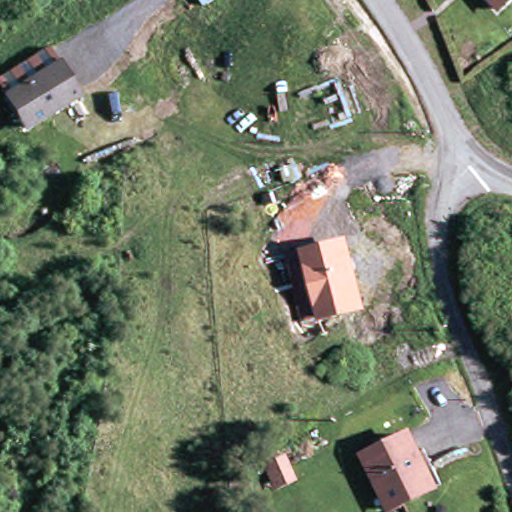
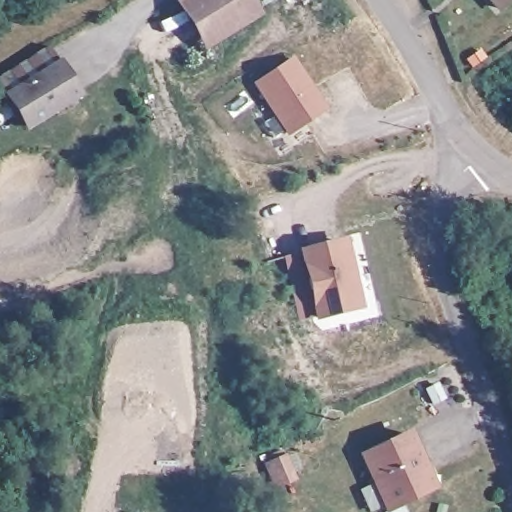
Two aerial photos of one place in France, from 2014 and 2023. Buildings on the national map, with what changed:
new [(261,14),(204,49),(175,0),(252,0),(261,14)]
unchanged [(500,0),(509,0),(504,5),(500,0)]
new [(324,106),(289,131),(256,84),(291,59),(324,106)]
unchanged [(8,93),(60,60),(79,91),(28,123),(8,93)]
unchanged [(346,237),(364,309),(321,319),(316,305),(311,306),(296,247),(346,237)]
unchanged [(435,488),(389,505),(371,449),(414,433),(435,488)]
new [(285,455),(296,480),(276,488),(265,464),(285,455)]

